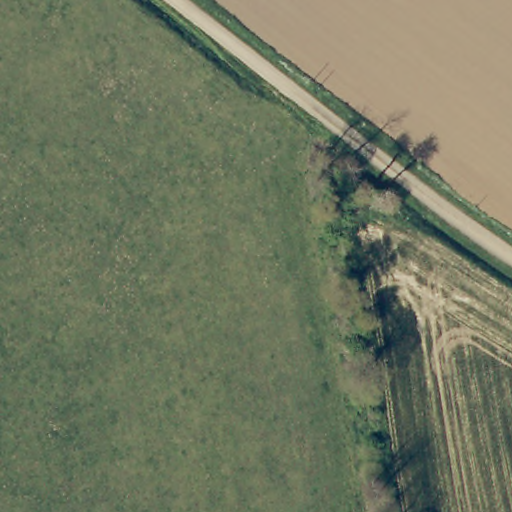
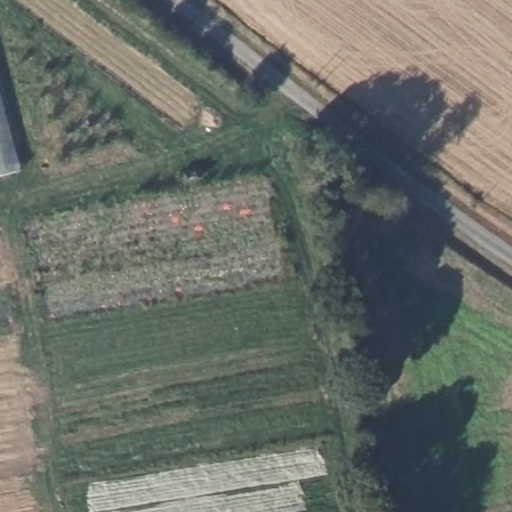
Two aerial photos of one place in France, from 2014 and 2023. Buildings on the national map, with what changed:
new [(23,171),(0,177),(0,87),(23,171)]

